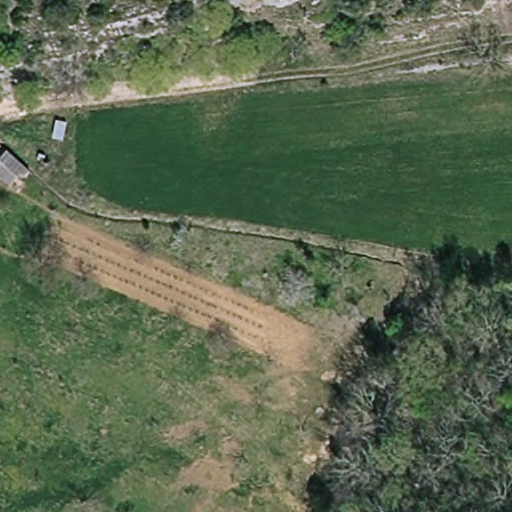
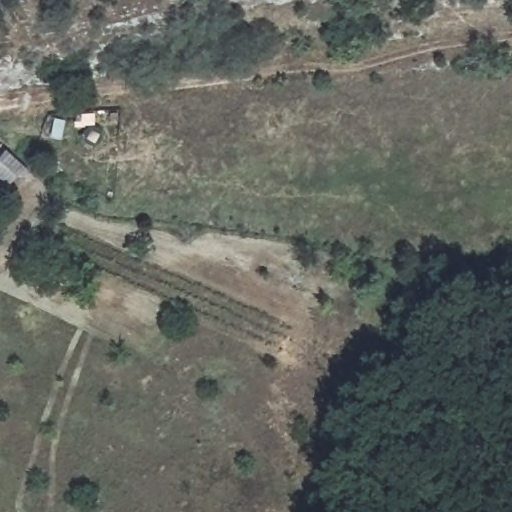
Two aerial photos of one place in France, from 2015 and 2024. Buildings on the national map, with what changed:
unchanged [(12,144),(31,164),(13,183),(0,170),(0,159),(12,144)]

